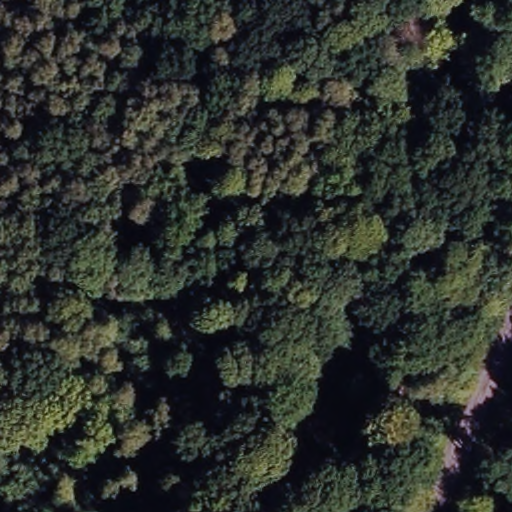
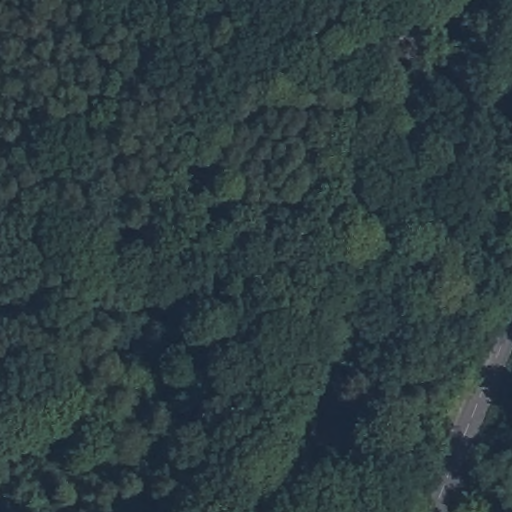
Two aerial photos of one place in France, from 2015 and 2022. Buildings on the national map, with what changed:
[]

